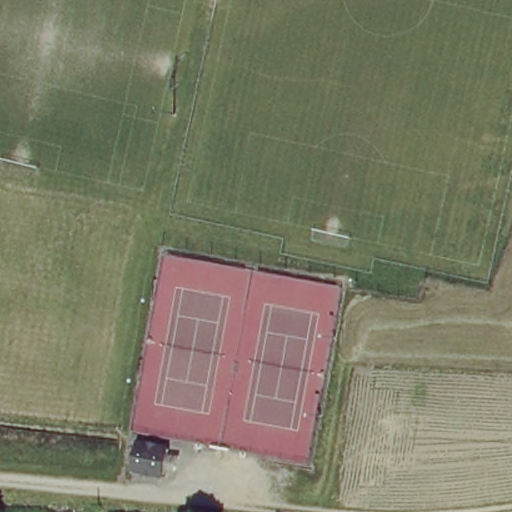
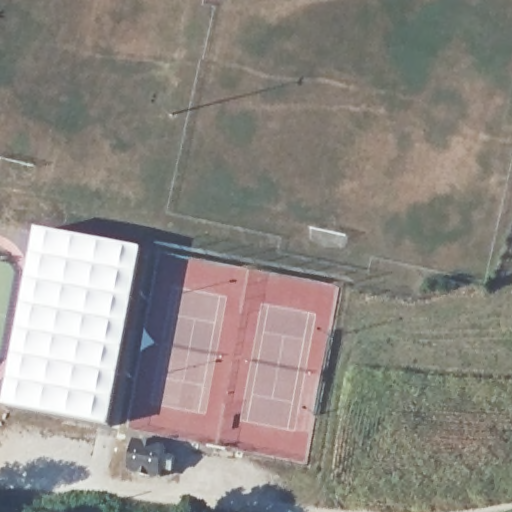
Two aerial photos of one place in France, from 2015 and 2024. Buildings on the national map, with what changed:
new [(12,361),(38,229),(146,249),(113,429),(4,408),(12,361)]
unchanged [(173,472),(164,470),(163,476),(151,474),(151,477),(139,475),(140,472),(130,471),(134,445),(145,447),(145,443),(156,445),(156,448),(167,451),(166,455),(175,457),(173,472)]

